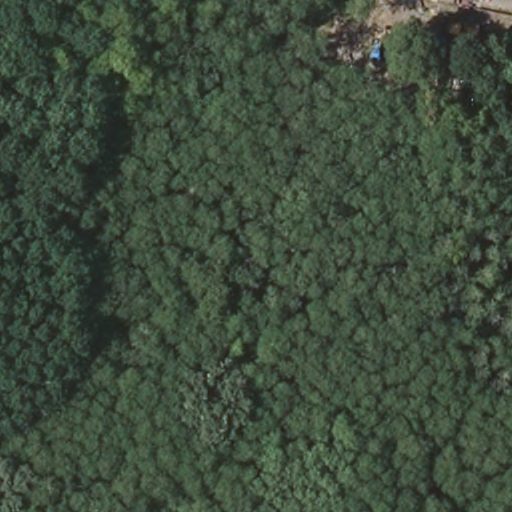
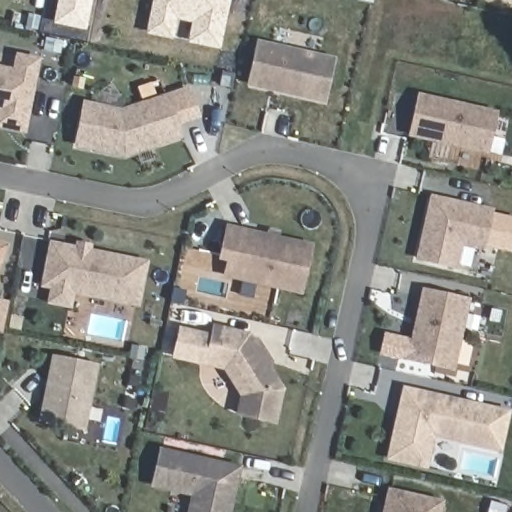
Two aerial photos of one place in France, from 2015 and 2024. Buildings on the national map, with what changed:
new [(91,0),(86,31),(52,24),(57,0),(91,0)]
new [(193,42),(197,22),(155,14),(158,0),(230,0),(220,47),(193,42)]
unchanged [(479,0),(485,0),(484,1),(479,0)]
new [(256,40),(336,57),(326,104),(247,86),(256,40)]
new [(13,69),(15,53),(41,59),(25,134),(0,128),(0,66),(13,69)]
new [(417,93),(498,111),(488,153),(408,136),(417,93)]
new [(167,94),(182,138),(126,156),(74,145),(83,101),(122,108),(167,94)]
new [(485,251),(463,247),(458,270),(416,262),(430,194),(493,208),(485,251)]
new [(226,261),(218,260),(225,224),(267,234),(268,231),(280,233),(279,237),(313,244),(302,295),(222,278),(226,261)]
new [(140,306),(73,295),(72,307),(47,304),(49,290),(41,289),(47,242),(74,246),(75,241),(92,244),(91,250),(148,260),(140,306)]
new [(422,289),(470,298),(454,372),(401,359),(406,338),(410,339),(422,289)]
new [(239,396),(222,369),(172,360),(178,327),(210,333),(212,324),(251,333),(251,337),(258,338),(273,364),(272,369),(284,387),(278,424),(236,416),(239,396)]
new [(86,431),(39,422),(52,355),(99,364),(86,431)]
new [(511,411),(501,451),(434,436),(427,470),(387,460),(402,386),(511,411)]
new [(242,464),(232,512),(186,512),(190,496),(150,486),(158,447),(242,464)]
new [(441,512),(382,512),(387,488),(443,500),(441,512)]

